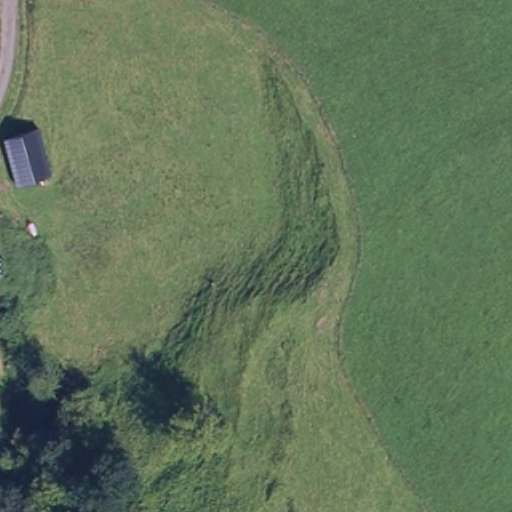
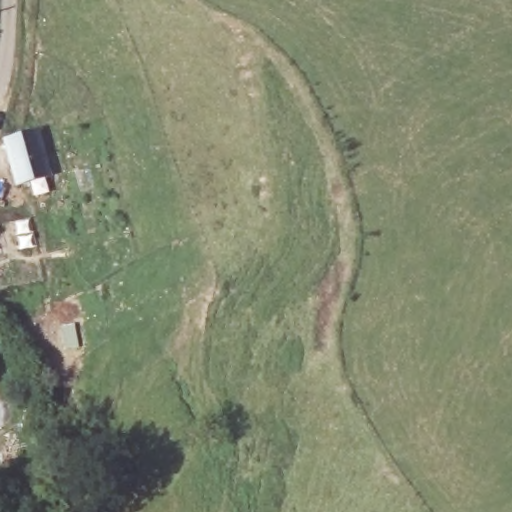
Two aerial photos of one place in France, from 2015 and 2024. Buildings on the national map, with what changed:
unchanged [(14,187),(2,142),(36,131),(49,176),(14,187)]

